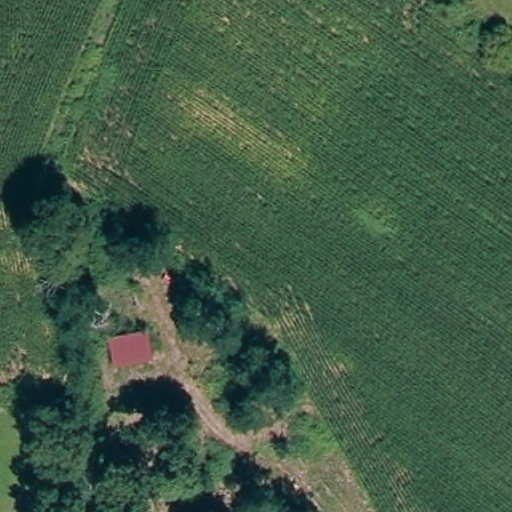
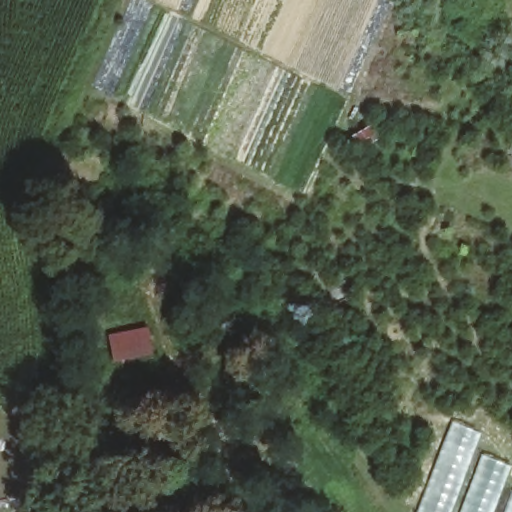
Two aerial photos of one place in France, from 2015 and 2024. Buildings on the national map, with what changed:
new [(481,433),(451,512),(416,512),(452,421),(481,433)]
new [(510,465),(492,512),(459,512),(481,454),(510,465)]
new [(512,492),(512,512),(505,512),(512,492)]

